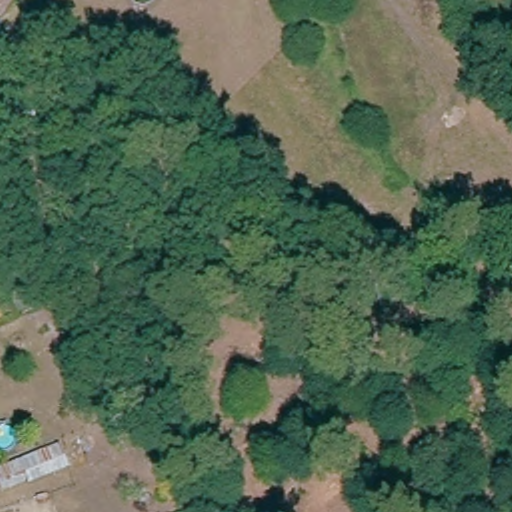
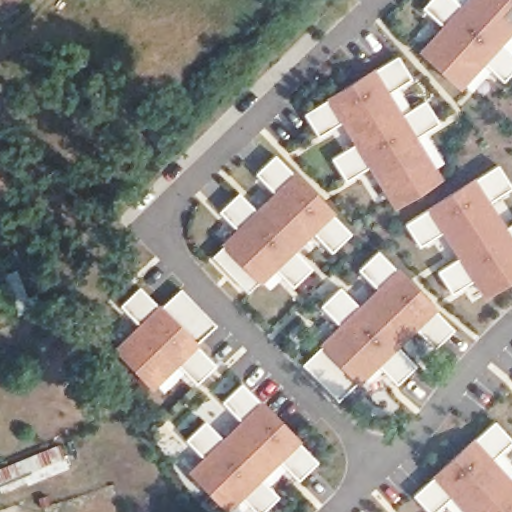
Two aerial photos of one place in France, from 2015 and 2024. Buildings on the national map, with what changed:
unchanged [(4,12),(0,9),(0,0),(13,0),(4,12)]
new [(503,44),(512,52),(512,73),(505,80),(485,62),(462,88),(420,50),(443,24),(424,6),(430,0),(455,0),(462,6),(467,0),(512,0),(512,34),(503,44)]
new [(396,207),(370,166),(347,180),(333,157),(355,145),(342,121),(318,135),(305,112),(328,99),(326,96),(375,66),(377,69),(398,55),(413,79),(390,92),(404,114),(426,100),(440,122),(418,136),(442,179),(396,207)]
new [(333,251),(315,232),(296,250),(313,268),(295,285),(276,267),(260,282),(258,281),(249,290),(214,255),(224,245),(222,242),(237,227),(220,210),(239,191),(257,209),(276,190),(257,171),(276,154),(295,172),(297,170),(336,211),(333,214),(352,232),(333,251)]
new [(484,296),(473,280),(453,292),(439,270),(460,257),(442,231),(421,245),(406,222),(498,164),(512,185),(512,188),(491,200),(507,226),(512,223),(512,279),(484,296)]
new [(0,166),(12,186),(0,195),(0,166)]
new [(436,347),(417,329),(399,346),(417,366),(397,383),(380,365),(360,384),(357,381),(341,397),(306,363),(322,346),(320,342),(340,322),(322,304),(341,286),(360,306),(379,286),(359,268),(378,250),(397,268),(399,266),(439,308),(437,310),(456,329),(436,347)]
new [(197,383),(180,365),(151,390),(113,347),(139,323),(120,303),(140,285),(158,305),(161,302),(163,305),(181,288),(216,324),(198,341),(201,345),(199,346),(216,364),(197,383)]
new [(282,461),(262,479),(280,496),(262,512),(255,512),(240,496),(227,507),(188,470),(204,455),(187,437),(206,420),(222,437),(241,420),(223,400),(243,382),(262,401),(263,399),(302,440),(301,442),(318,461),(299,479),(282,461)]
new [(435,512),(430,512),(414,495),(434,477),(431,474),(475,437),(476,439),(496,421),(512,438),(512,442),(494,458),(512,478),(512,512),(466,512),(452,497),(435,512)]
unchanged [(63,465),(12,485),(10,480),(0,485),(0,466),(55,445),(63,465)]

